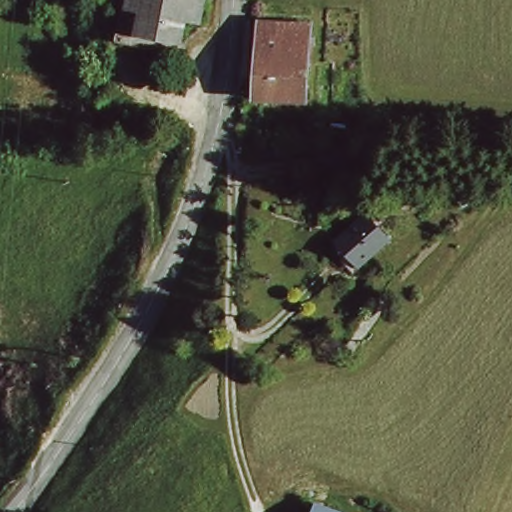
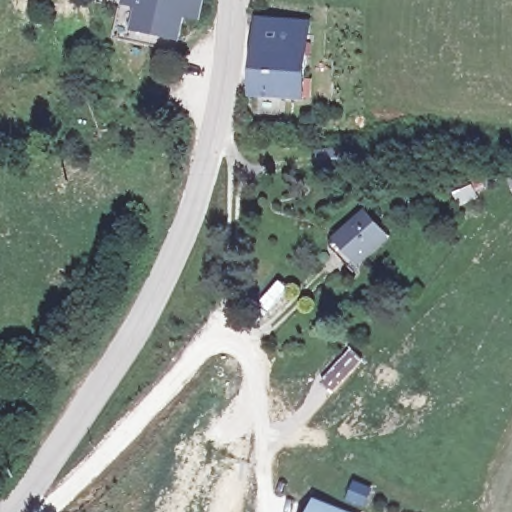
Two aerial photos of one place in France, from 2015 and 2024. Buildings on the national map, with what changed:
unchanged [(191,22),(177,19),(172,40),(118,27),(123,0),(196,0),(191,22)]
unchanged [(260,25),(313,34),(303,104),(249,95),(260,25)]
unchanged [(347,200),(303,195),(290,193),(293,175),(308,177),(350,182),(347,200)]
unchanged [(426,230),(418,212),(421,210),(436,204),(444,220),(426,230)]
unchanged [(342,236),(375,219),(389,244),(355,262),(342,236)]
unchanged [(328,512),(320,512),(322,510),(328,512)]

